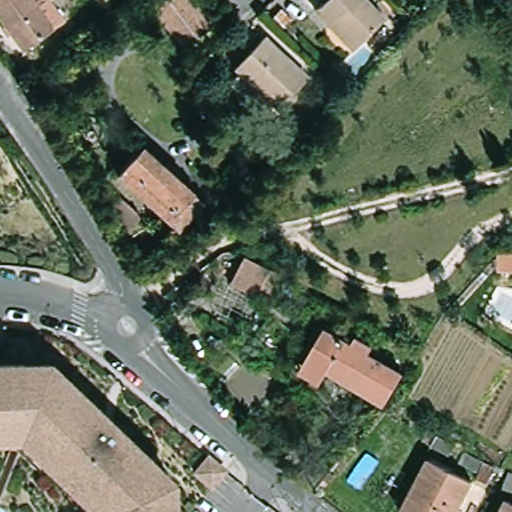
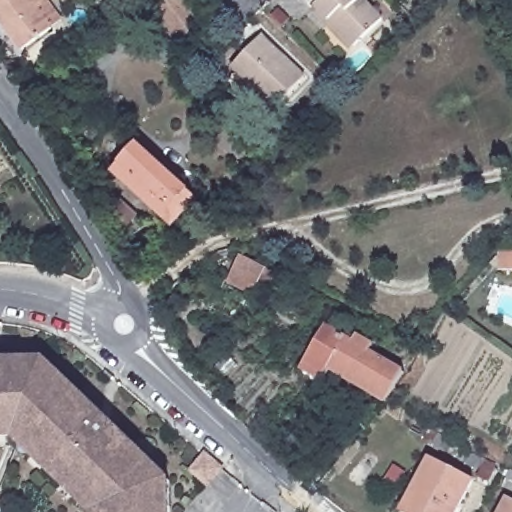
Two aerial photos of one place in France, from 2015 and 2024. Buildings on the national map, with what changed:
unchanged [(22,51),(0,22),(0,0),(47,0),(63,22),(22,51)]
unchanged [(185,46),(154,5),(160,0),(191,0),(212,27),(185,46)]
unchanged [(315,0),(366,0),(380,16),(353,42),(348,46),(310,5),(315,0)]
unchanged [(232,75),(244,62),(242,60),(271,30),(313,72),(285,101),(283,100),(271,113),(232,75)]
unchanged [(374,30),(380,37),(374,44),(367,36),(374,30)]
unchanged [(66,36),(70,42),(49,58),(45,52),(66,36)]
unchanged [(176,224),(118,170),(141,145),(199,200),(176,224)]
unchanged [(122,234),(94,189),(105,178),(141,212),(122,234)]
unchanged [(227,278),(244,252),(268,266),(266,270),(251,293),(227,278)]
unchanged [(512,252),(512,269),(499,268),(500,252),(512,252)]
unchanged [(301,368),(305,362),(327,326),(362,348),(365,341),(373,346),(369,352),(403,373),(389,396),(385,402),(329,367),(324,375),(321,380),(301,368)]
unchanged [(68,483),(74,476),(58,461),(52,468),(21,438),(0,438),(0,363),(27,362),(51,361),(69,378),(100,408),(95,413),(109,427),(110,427),(110,426),(111,426),(111,425),(112,425),(113,425),(114,425),(115,425),(116,425),(117,425),(117,426),(118,426),(119,426),(157,464),(175,482),(176,505),(176,512),(97,512),(68,483)]
unchanged [(457,458),(427,445),(432,431),(462,445),(457,458)]
unchanged [(196,466),(205,456),(206,455),(222,469),(221,471),(212,480),(209,485),(192,471),(196,466)]
unchanged [(473,478),(457,512),(402,512),(430,457),(473,478)]
unchanged [(315,483),(304,472),(314,463),(324,475),(315,483)]
unchanged [(511,473),(512,471),(512,489),(505,486),(511,473)]
unchanged [(512,512),(503,512),(510,498),(512,499),(512,512)]

